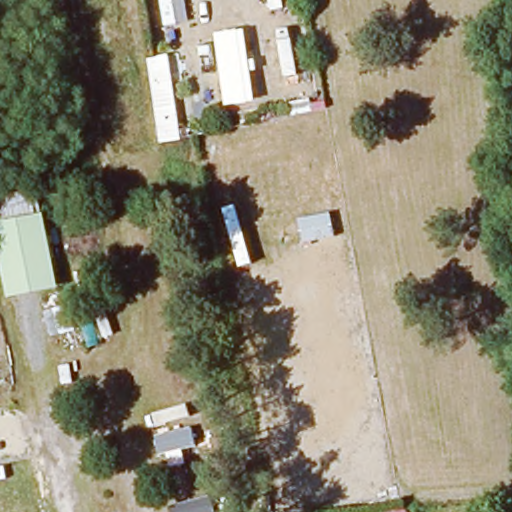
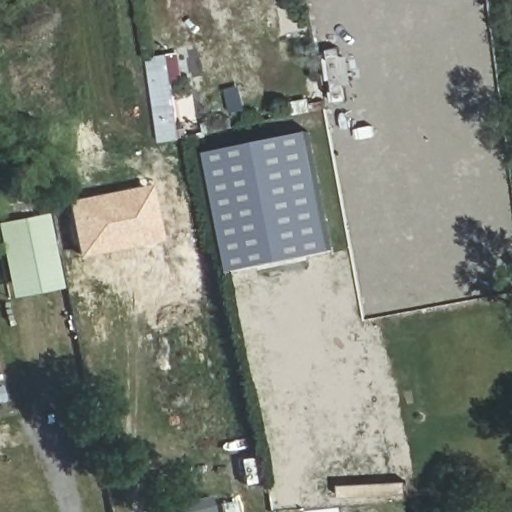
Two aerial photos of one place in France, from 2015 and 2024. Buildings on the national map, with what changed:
new [(185,83),(173,85),(182,140),(162,144),(147,60),(180,54),(185,83)]
new [(307,131),(331,249),(227,267),(204,151),(307,131)]
demolished [(35,177),(45,227),(2,236),(0,225),(0,185),(35,177)]
new [(160,242),(77,259),(66,202),(146,186),(160,242)]
new [(45,214),(59,288),(8,297),(0,256),(0,223),(45,214)]

